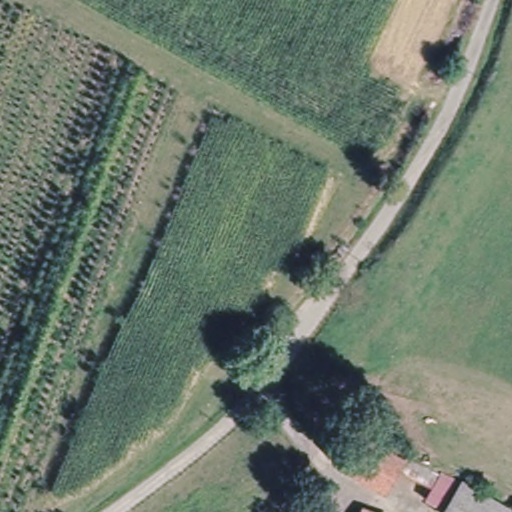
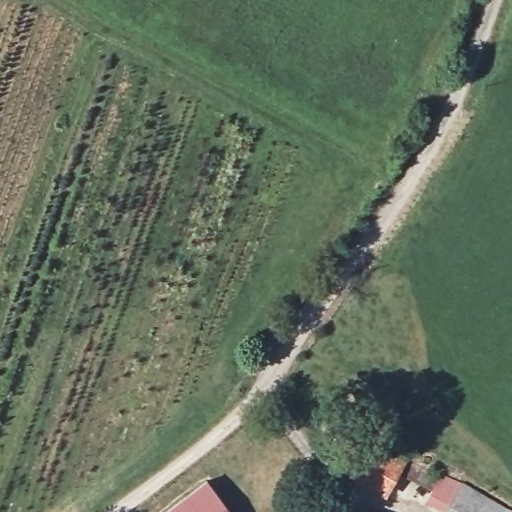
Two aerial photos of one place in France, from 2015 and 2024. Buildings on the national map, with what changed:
unchanged [(392,486),(353,472),(361,437),(404,453),(392,486)]
unchanged [(465,473),(512,500),(512,512),(456,512),(446,506),(465,473)]
new [(207,480),(232,512),(166,512),(207,480)]
unchanged [(390,510),(390,512),(359,512),(362,501),(390,510)]

